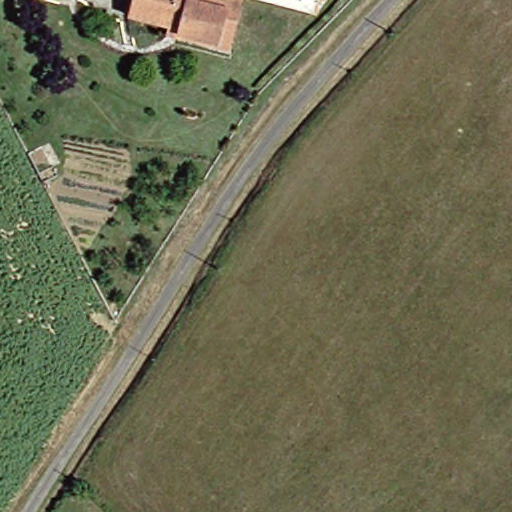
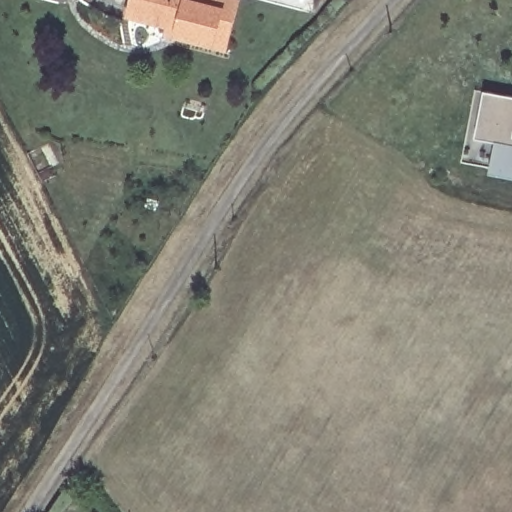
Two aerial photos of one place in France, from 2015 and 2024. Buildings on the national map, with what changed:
unchanged [(207,40),(165,33),(165,27),(120,19),(124,0),(231,0),(223,43),(207,40)]
new [(492,167),(462,161),(475,90),(484,92),(512,96),(512,176),(491,172),(492,167)]

